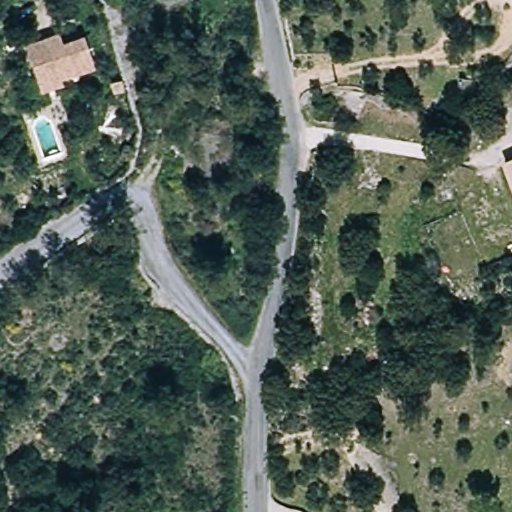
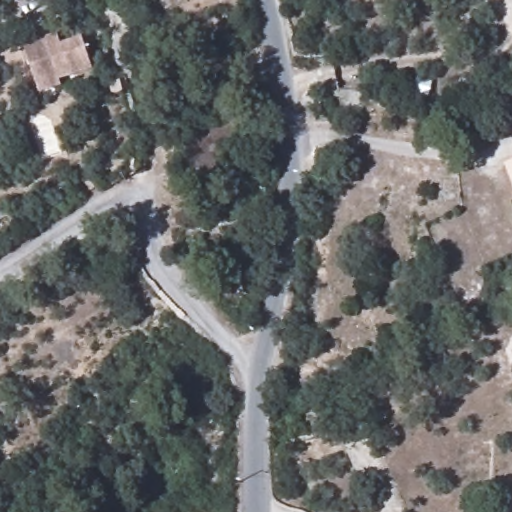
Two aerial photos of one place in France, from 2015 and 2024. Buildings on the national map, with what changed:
unchanged [(63,37),(66,48),(87,40),(98,74),(65,85),(67,91),(45,97),(29,49),(63,37)]
unchanged [(512,187),(507,176),(504,167),(512,164),(512,187)]

